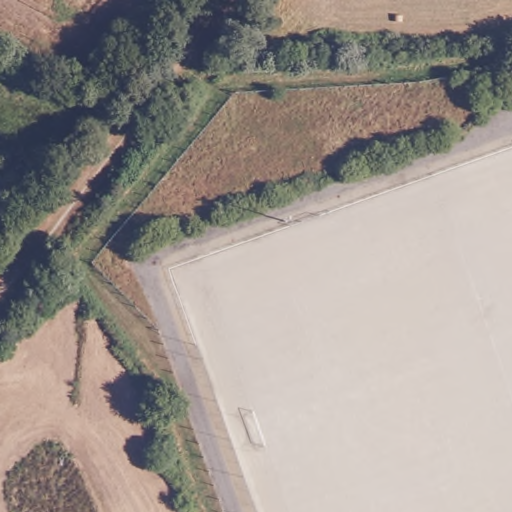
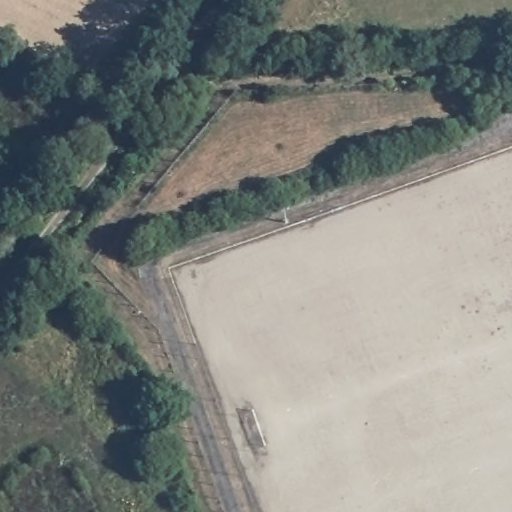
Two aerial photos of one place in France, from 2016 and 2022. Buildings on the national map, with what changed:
[]

